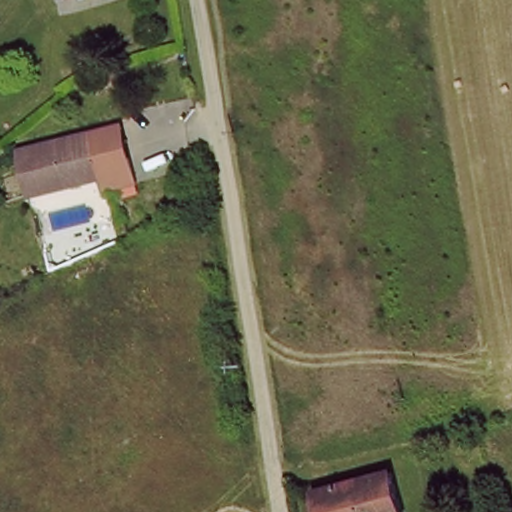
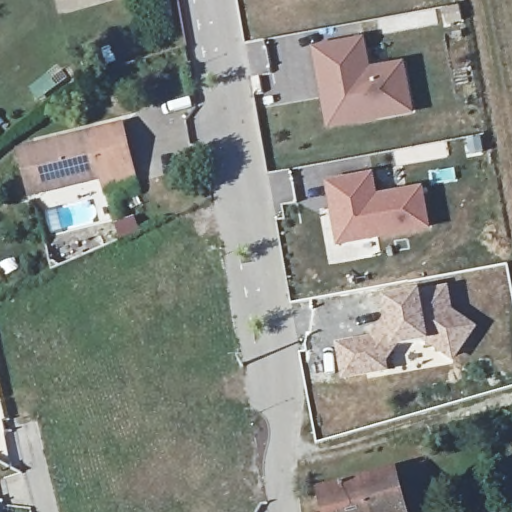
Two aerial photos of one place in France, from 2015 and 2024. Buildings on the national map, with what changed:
unchanged [(58,0),(63,0),(58,1),(58,0)]
new [(363,39),(368,70),(401,65),(408,119),(318,132),(310,46),(363,39)]
unchanged [(34,197),(22,154),(125,125),(141,181),(110,190),(107,177),(90,181),(52,192),(34,197)]
new [(372,175),(374,195),(422,189),(427,235),(332,249),(334,247),(323,180),(372,175)]
new [(373,340),(387,317),(383,299),(421,291),(421,296),(449,289),(455,312),(479,331),(453,365),(427,345),(398,350),(389,364),(390,375),(343,383),(336,346),(373,340)]
unchanged [(327,512),(321,492),(398,472),(409,512),(327,512)]

